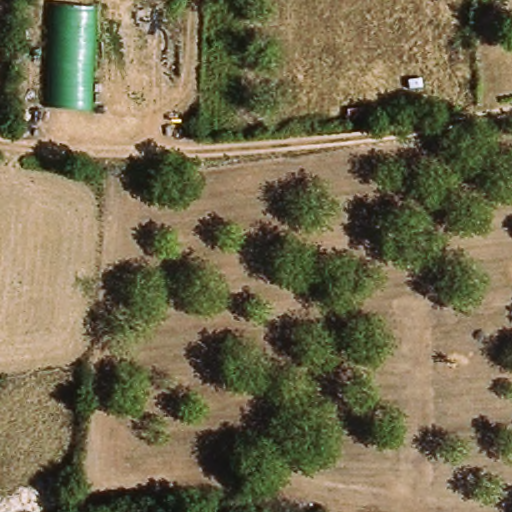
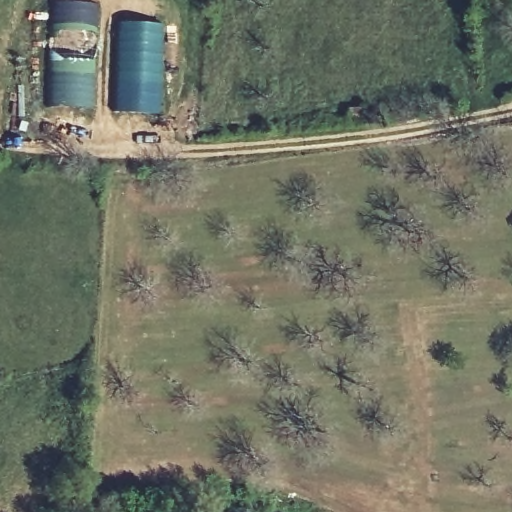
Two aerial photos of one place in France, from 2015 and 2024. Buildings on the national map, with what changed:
unchanged [(55,2),(97,6),(93,105),(50,104),(55,2)]
new [(158,114),(115,114),(117,24),(162,24),(158,114)]

